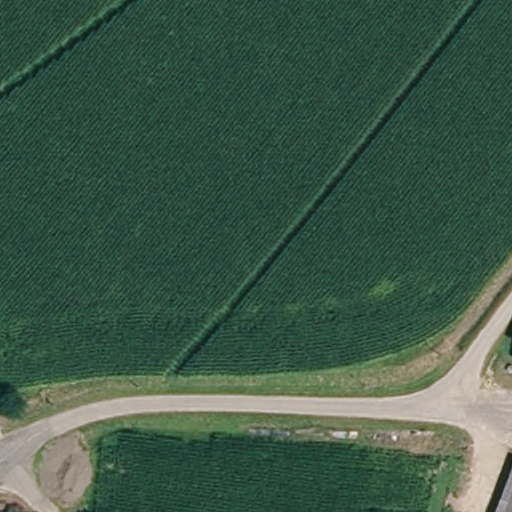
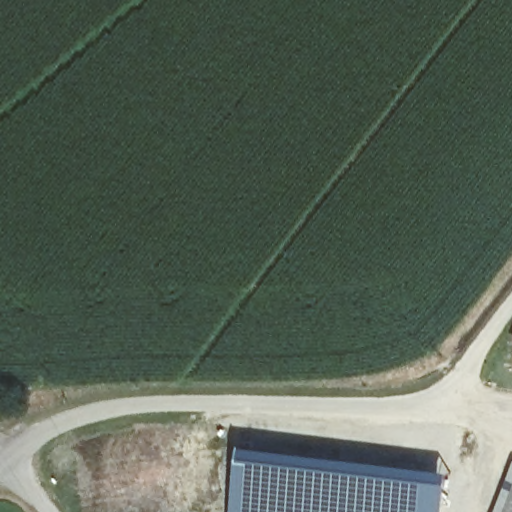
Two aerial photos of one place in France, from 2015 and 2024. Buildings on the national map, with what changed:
new [(232,478),(236,478),(241,443),(278,450),(419,467),(451,473),(445,512),(228,512),(232,478)]
unchanged [(512,482),(512,512),(502,512),(512,482)]

